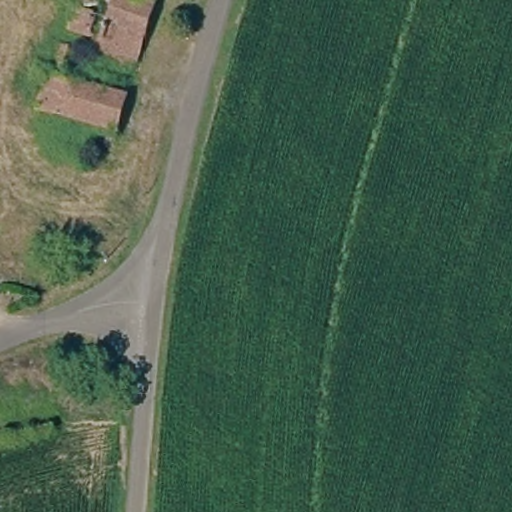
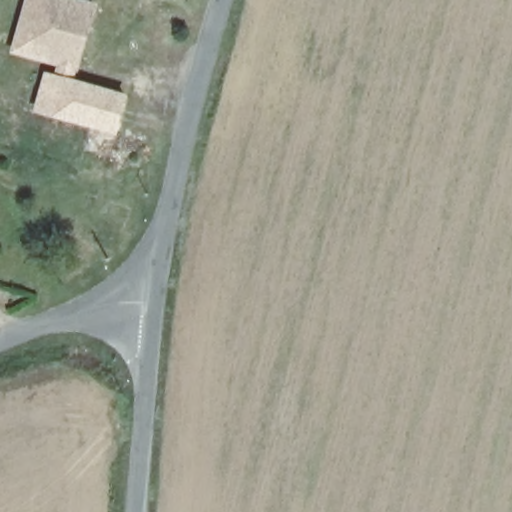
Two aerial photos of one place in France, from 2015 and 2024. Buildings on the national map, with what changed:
new [(98,2),(79,71),(10,53),(24,0),(91,0),(98,2)]
demolished [(138,64),(83,48),(85,35),(74,32),(83,0),(156,0),(138,64)]
unchanged [(41,114),(50,78),(61,81),(126,98),(116,132),(41,114)]

